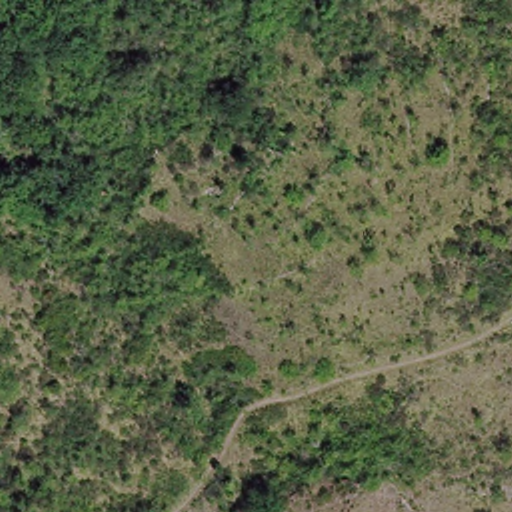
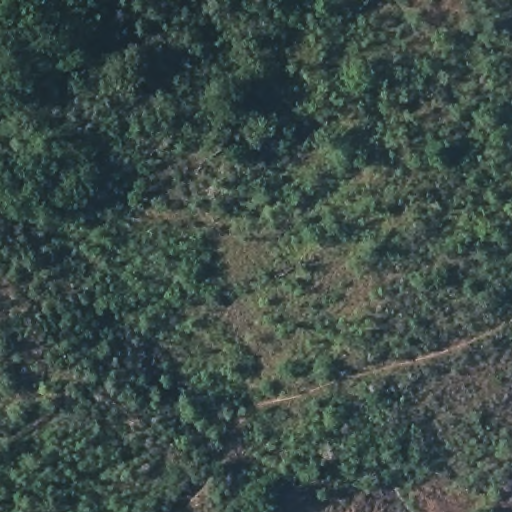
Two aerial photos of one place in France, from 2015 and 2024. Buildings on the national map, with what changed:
unchanged [(285,155),(265,151),(268,128),(293,135),(285,155)]

